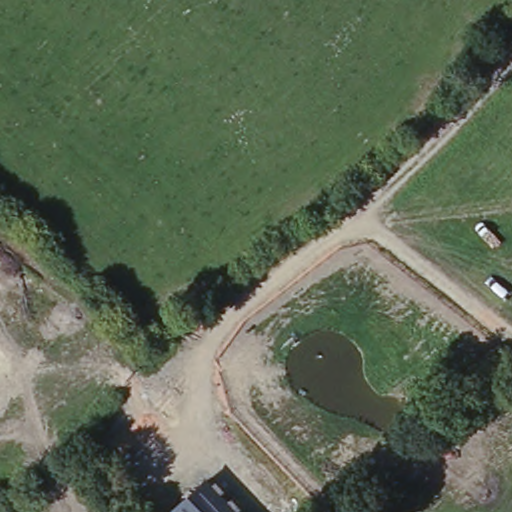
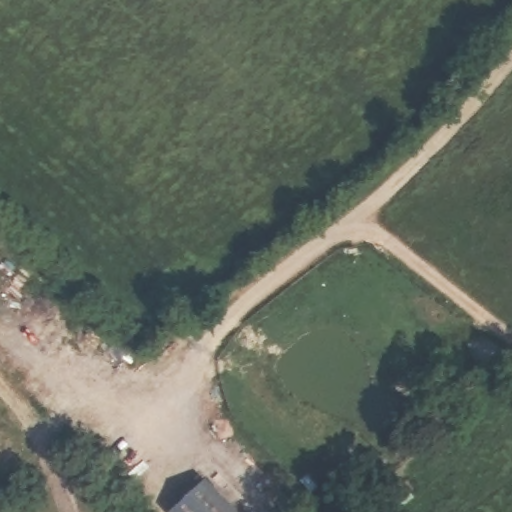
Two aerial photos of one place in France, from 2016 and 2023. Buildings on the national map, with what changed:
unchanged [(205,479),(237,512),(169,512),(205,479)]

